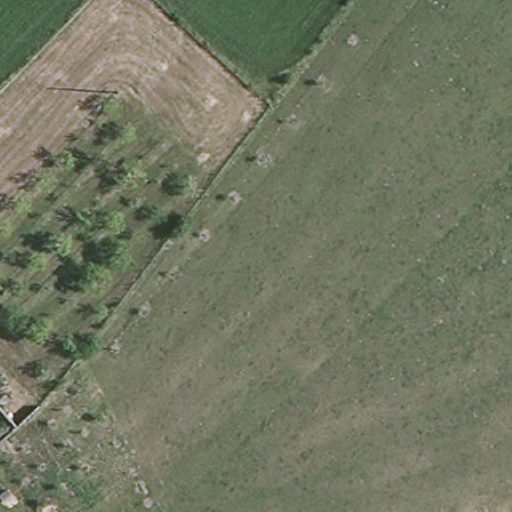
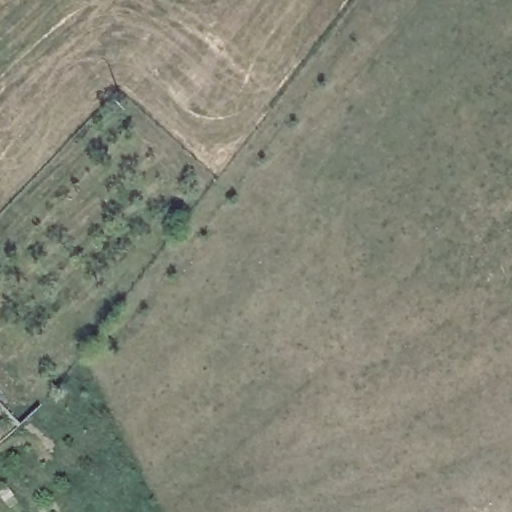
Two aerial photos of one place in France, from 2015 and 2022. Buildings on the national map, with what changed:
[]

